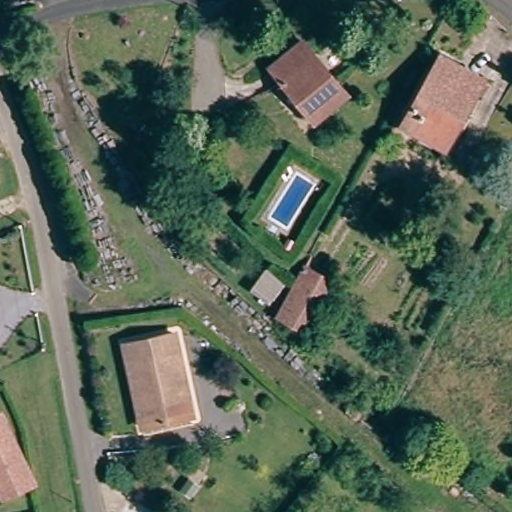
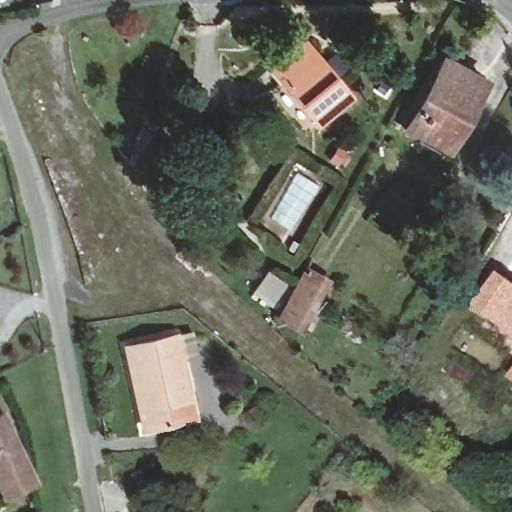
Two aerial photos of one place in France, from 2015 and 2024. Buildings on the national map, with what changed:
unchanged [(274,66),(309,40),(349,93),(316,118),(274,66)]
unchanged [(482,82),(445,148),(404,124),(440,58),(482,82)]
unchanged [(308,265),(333,279),(304,331),(279,318),(308,265)]
new [(499,274),(512,283),(512,336),(474,307),(499,274)]
unchanged [(145,427),(142,400),(134,401),(130,366),(141,365),(139,346),(180,340),(190,422),(145,427)]
new [(509,378),(512,373),(512,381),(509,378)]
unchanged [(39,486),(34,489),(30,492),(25,495),(19,498),(13,499),(9,500),(0,483),(0,417),(4,415),(39,486)]

